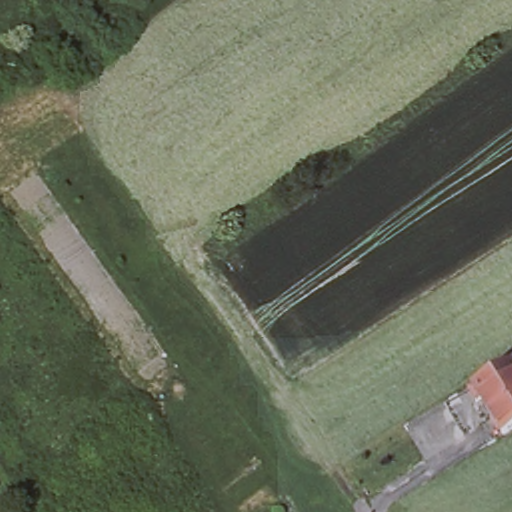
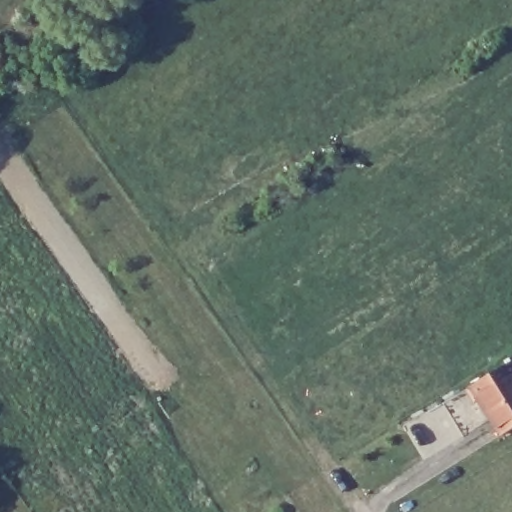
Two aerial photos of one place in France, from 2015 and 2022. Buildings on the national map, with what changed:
unchanged [(508,436),(478,388),(512,367),(512,434),(508,436)]

